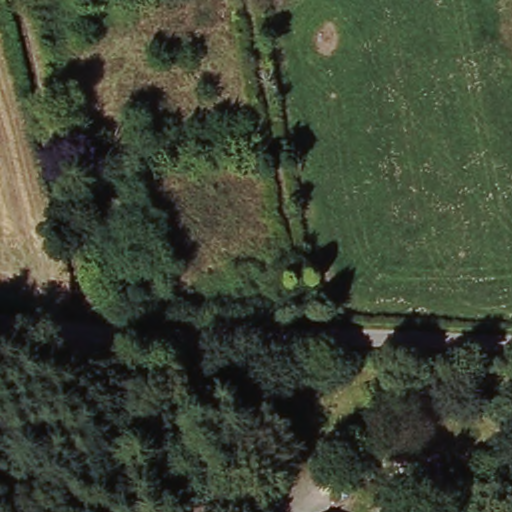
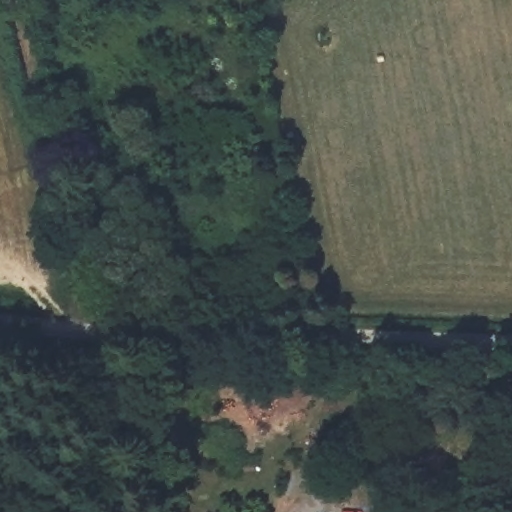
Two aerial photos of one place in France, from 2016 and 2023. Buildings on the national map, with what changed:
unchanged [(321,438),(323,464),(308,466),(305,439),(321,438)]

